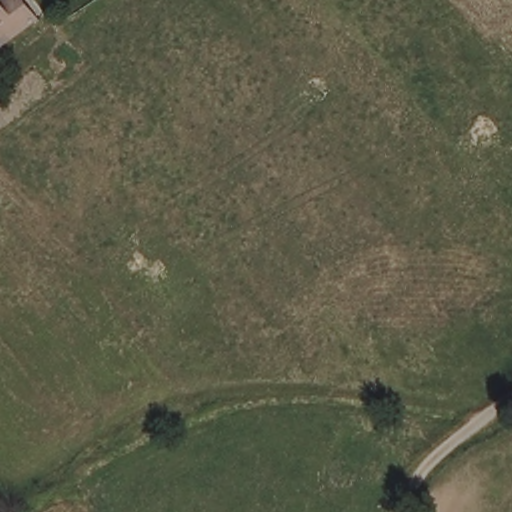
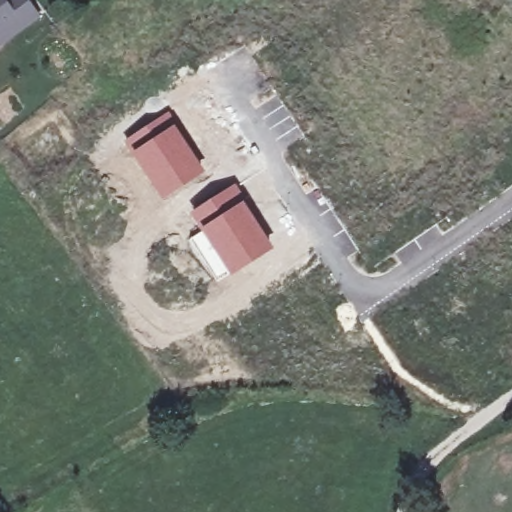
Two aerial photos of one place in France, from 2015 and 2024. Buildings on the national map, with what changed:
unchanged [(0,48),(0,1),(4,6),(12,0),(21,0),(35,17),(0,48)]
new [(168,110),(205,171),(162,200),(122,140),(168,110)]
new [(189,239),(201,231),(188,212),(235,184),(274,248),(229,275),(218,282),(189,239)]

